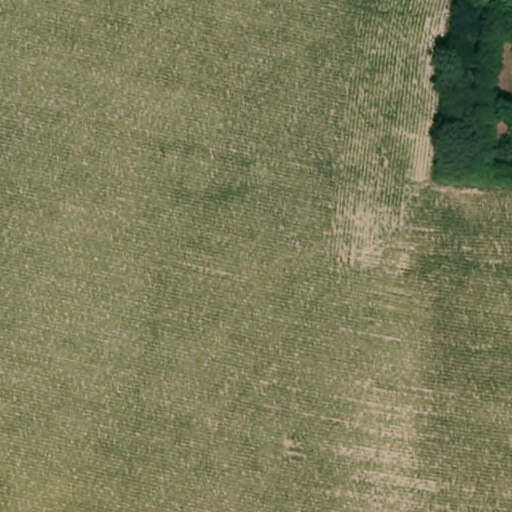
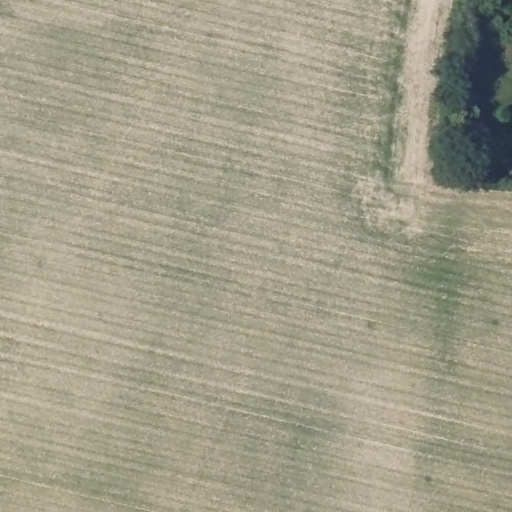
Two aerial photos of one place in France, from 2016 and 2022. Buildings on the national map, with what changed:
[]

